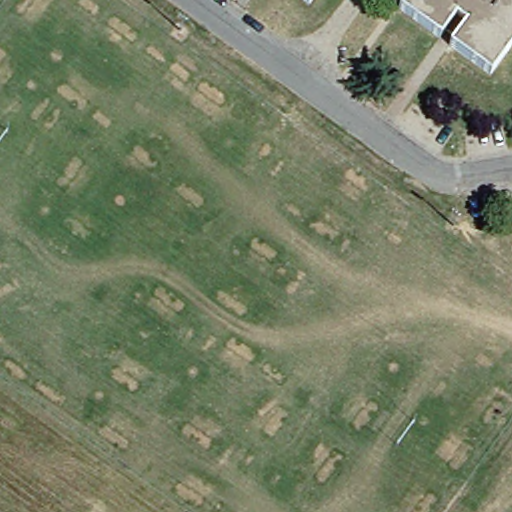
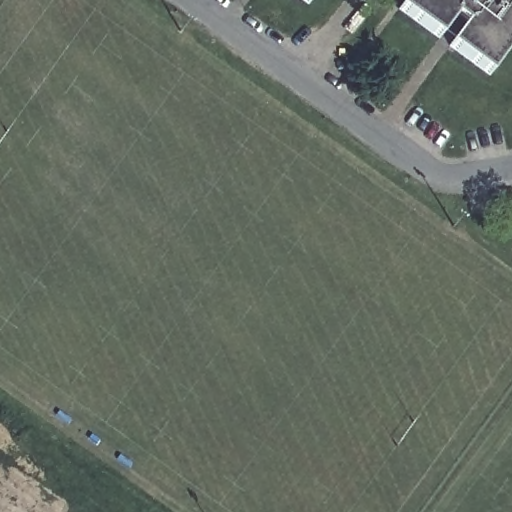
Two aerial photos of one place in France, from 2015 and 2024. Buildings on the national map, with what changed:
unchanged [(296,0),(301,0),(300,3),(296,0)]
unchanged [(395,7),(400,0),(512,0),(512,36),(485,74),(445,44),(452,34),(442,26),(435,36),(395,7)]

